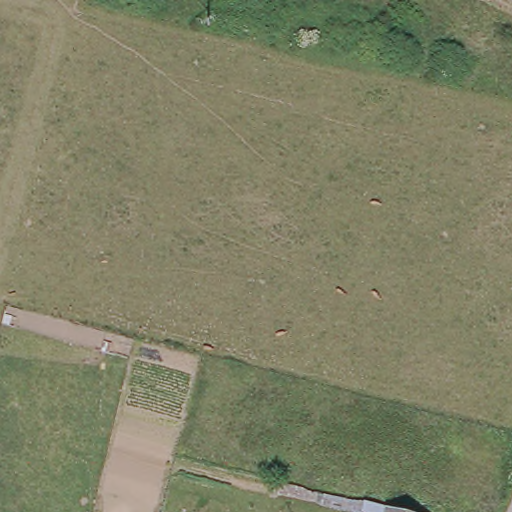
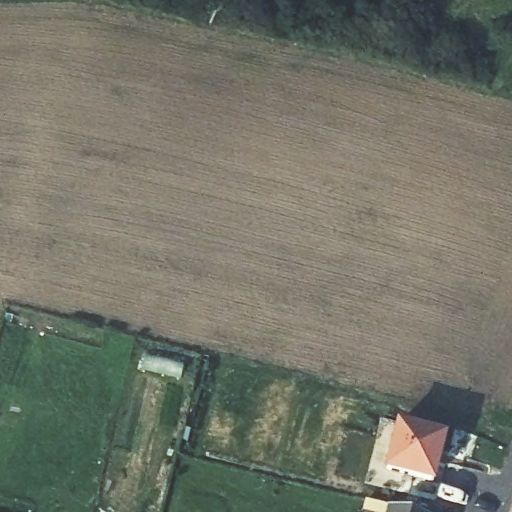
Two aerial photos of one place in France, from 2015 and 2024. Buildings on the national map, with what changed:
new [(383,473),(396,424),(446,437),(433,486),(383,473)]
unchanged [(394,512),(396,507),(416,512),(394,512)]

